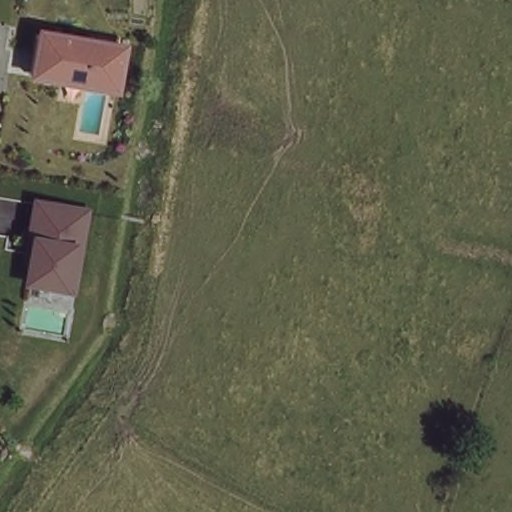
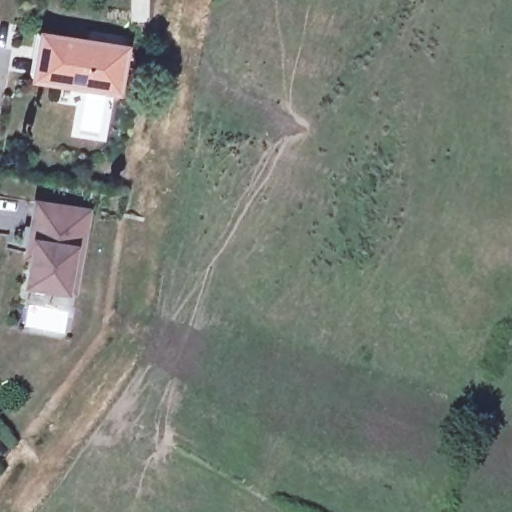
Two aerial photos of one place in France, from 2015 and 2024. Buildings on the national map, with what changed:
unchanged [(131,43),(122,95),(33,80),(44,28),(131,43)]
unchanged [(87,245),(78,243),(70,286),(19,280),(25,230),(19,229),(28,194),(91,205),(87,245)]

